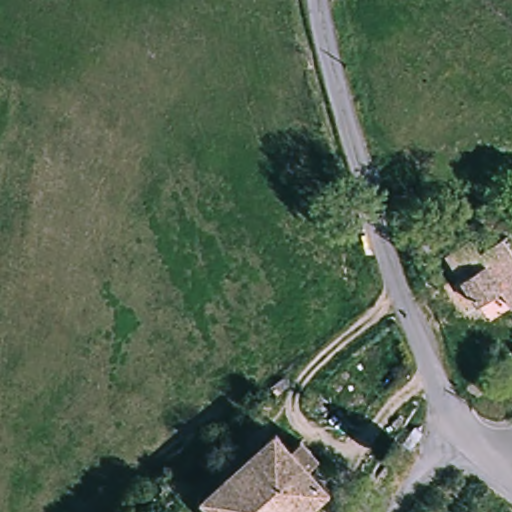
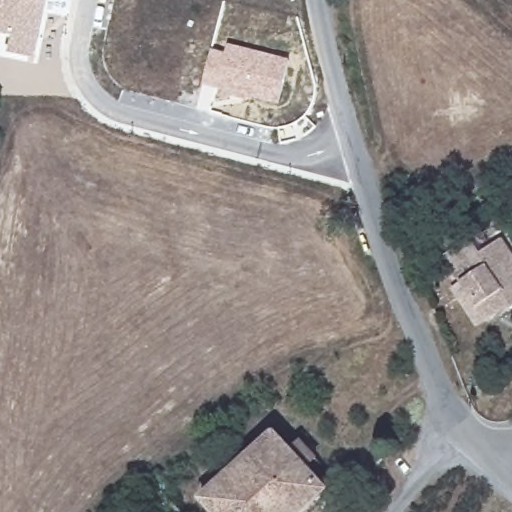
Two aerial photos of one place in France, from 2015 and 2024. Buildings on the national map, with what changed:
new [(34,59),(8,54),(12,34),(0,32),(0,0),(46,0),(34,59)]
new [(291,60),(279,105),(203,85),(213,50),(226,53),(229,44),(291,60)]
unchanged [(459,272),(449,258),(470,242),(481,257),(502,241),(512,255),(512,303),(504,292),(481,308),(456,275),(459,272)]
unchanged [(264,422),(279,437),(290,427),(321,461),(312,470),(338,497),(355,472),(373,492),(372,492),(356,512),(215,512),(193,488),(264,422)]

